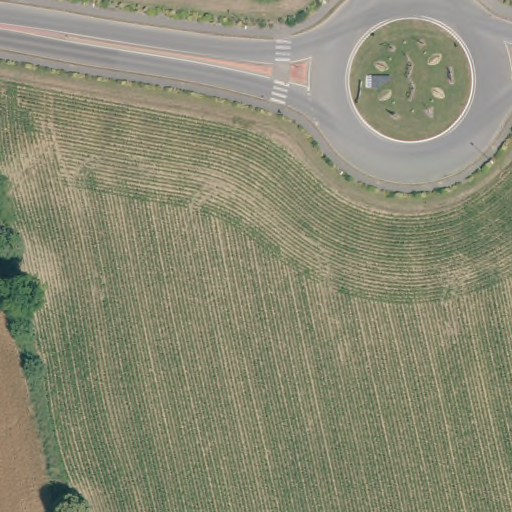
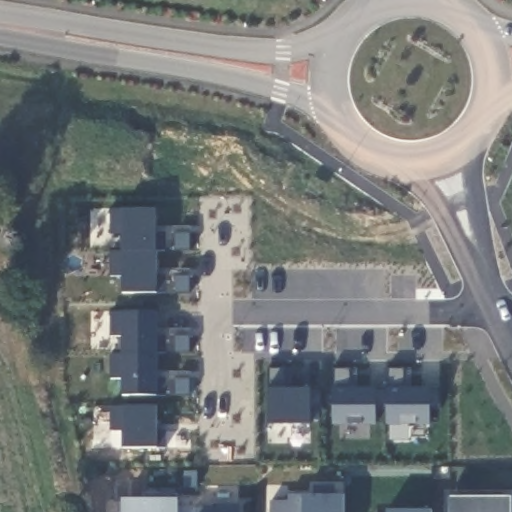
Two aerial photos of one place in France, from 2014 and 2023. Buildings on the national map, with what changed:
new [(121,293),(122,277),(110,277),(110,252),(123,252),(124,229),(110,229),(109,211),(122,210),(157,210),(156,293),(121,293)]
new [(157,336),(166,336),(166,352),(157,354),(157,380),(167,380),(166,395),(157,395),(121,395),(121,379),(110,379),(109,354),(122,354),(122,337),(109,337),(110,312),(121,312),(157,313),(157,336)]
new [(285,388),(311,390),(311,425),(267,423),(267,389),(268,369),(285,370),(285,388)]
new [(349,388),(387,388),(387,369),(403,370),(402,388),(430,388),(429,391),(440,391),(440,410),(429,410),(428,427),(375,425),(332,425),(332,387),(332,370),(350,370),(349,388)]
new [(122,432),(109,432),(109,407),(122,407),(157,407),(157,448),(122,449),(122,432)]
new [(288,496),(303,496),(312,496),(313,487),(334,487),(334,497),(345,497),(344,512),(270,512),(270,501),(287,502),(288,496)]
new [(512,497),(512,512),(448,512),(448,497),(512,497)]
new [(177,500),(177,512),(121,512),(122,498),(177,500)]
new [(239,512),(194,512),(194,508),(216,508),(216,504),(239,505),(239,512)]
new [(432,511),(432,512),(387,512),(387,511),(432,511)]

